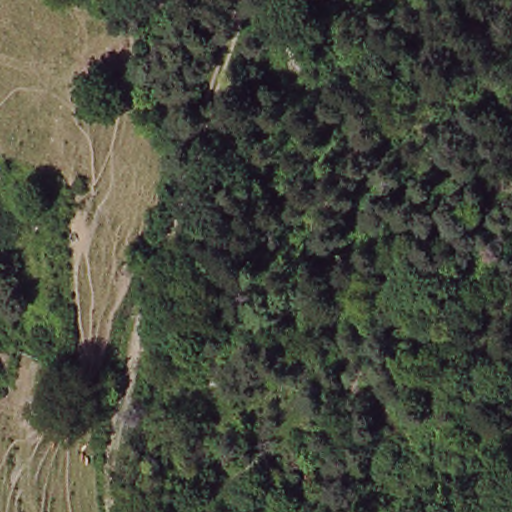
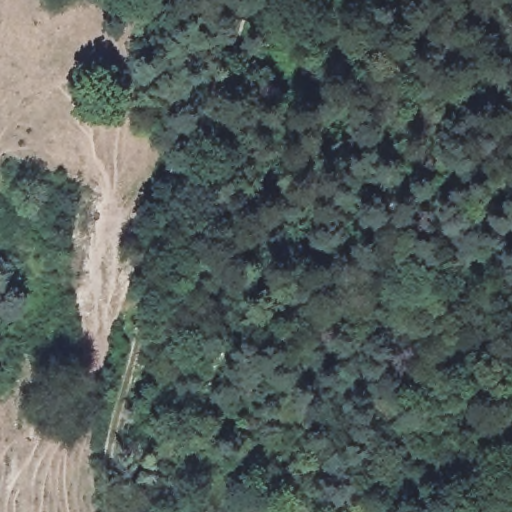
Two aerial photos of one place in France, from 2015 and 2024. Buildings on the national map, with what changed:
unchanged [(30,217),(25,212),(29,208),(35,212),(30,217)]
unchanged [(50,334),(50,328),(59,329),(59,334),(50,334)]

